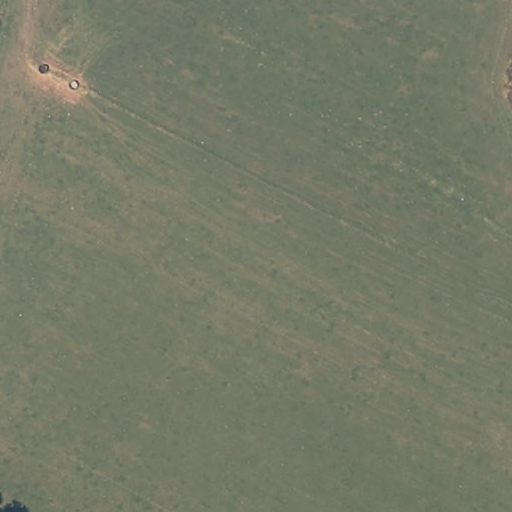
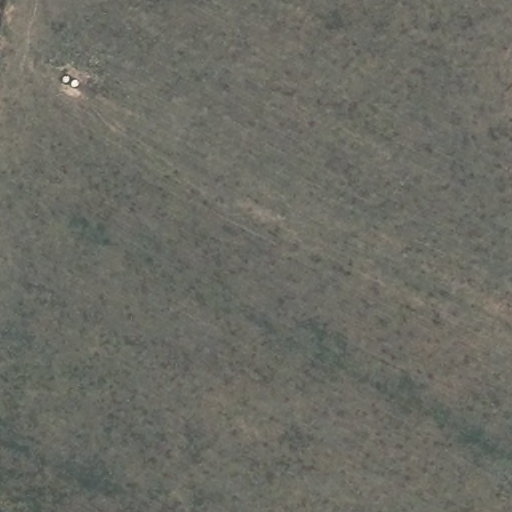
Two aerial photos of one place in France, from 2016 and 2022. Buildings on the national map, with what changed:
[]

